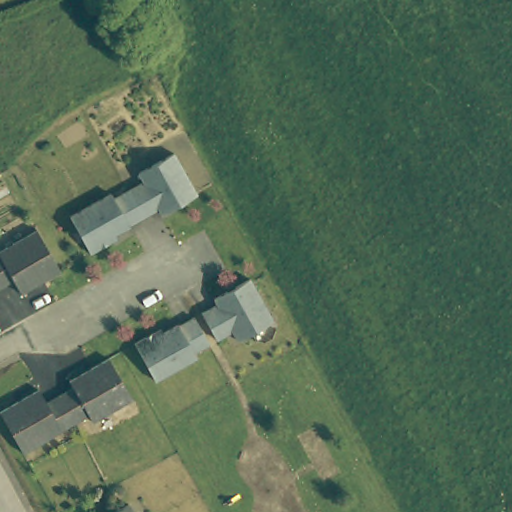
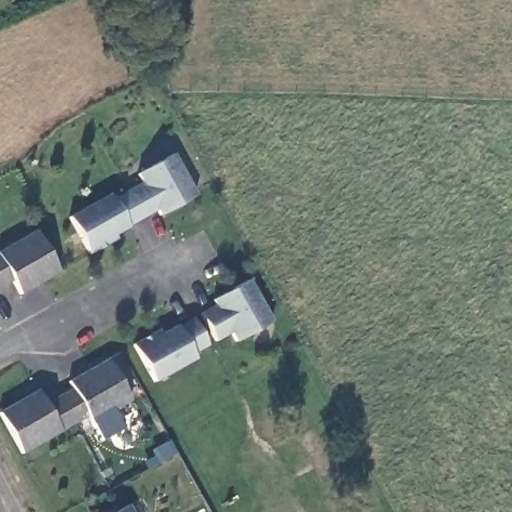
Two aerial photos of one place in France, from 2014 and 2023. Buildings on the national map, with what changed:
unchanged [(143,181),(138,174),(175,154),(198,196),(161,215),(158,210),(141,218),(126,191),(143,181)]
unchanged [(126,226),(127,228),(107,239),(109,243),(86,255),(66,216),(109,194),(112,199),(126,191),(141,218),(126,226)]
unchanged [(0,248),(40,226),(65,271),(25,293),(14,278),(3,285),(0,280),(0,248)]
unchanged [(214,301),(211,295),(247,276),(270,317),(234,337),(229,329),(214,337),(199,310),(214,301)]
unchanged [(0,280),(3,285),(0,287),(0,280)]
unchanged [(190,350),(193,355),(151,376),(130,338),(149,328),(152,333),(190,313),(206,340),(190,350)]
unchanged [(72,382),(113,360),(136,398),(99,422),(93,415),(78,423),(64,398),(78,390),(72,382)]
unchanged [(25,453),(3,413),(41,391),(51,405),(64,398),(78,423),(25,453)]
unchanged [(143,512),(117,512),(136,500),(143,512)]

